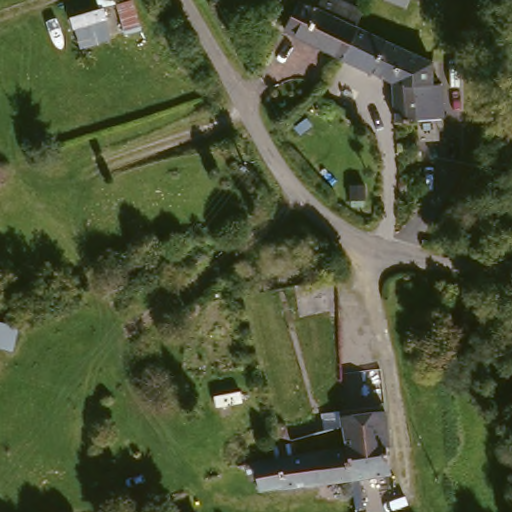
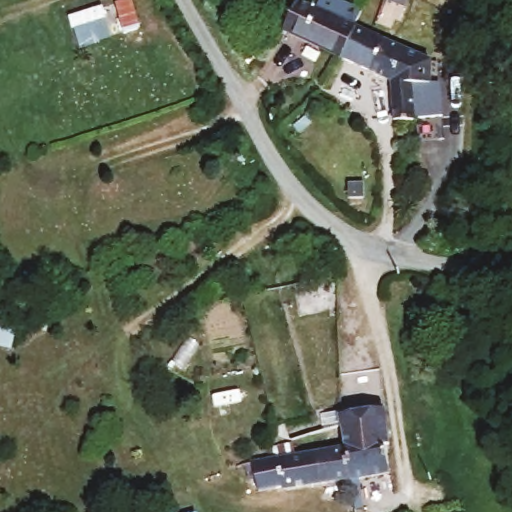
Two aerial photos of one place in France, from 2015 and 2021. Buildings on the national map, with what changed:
unchanged [(356,26),(355,27),(341,59),(285,32),(301,3),(317,10),(322,0),(335,0),(362,12),(356,26)]
unchanged [(395,0),(400,0),(399,2),(395,0)]
unchanged [(355,27),(356,26),(384,40),(370,73),(341,59),(355,27)]
unchanged [(370,73),(384,40),(385,40),(408,50),(407,56),(417,59),(417,52),(432,52),(432,84),(418,84),(419,121),(395,121),(394,84),(370,73)]
unchanged [(340,310),(292,312),(291,278),(337,276),(340,310)]
unchanged [(394,437),(393,443),(397,472),(398,476),(357,478),(351,441),(350,434),(348,420),(334,424),(330,425),(329,416),(347,413),(390,407),(392,423),(394,437)]
unchanged [(292,487),(288,484),(263,487),(260,460),(275,458),(273,445),(301,441),(343,428),(351,441),(357,478),(292,487)]

